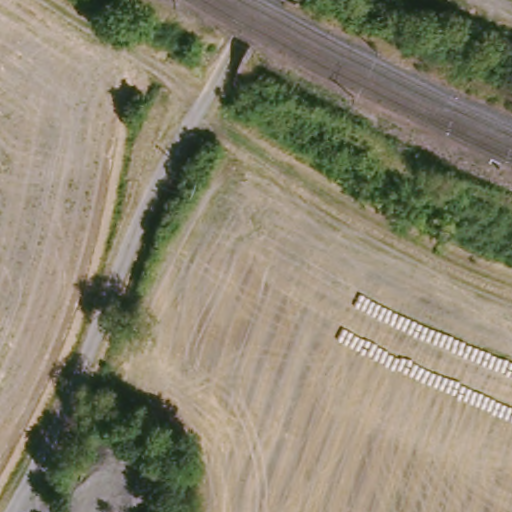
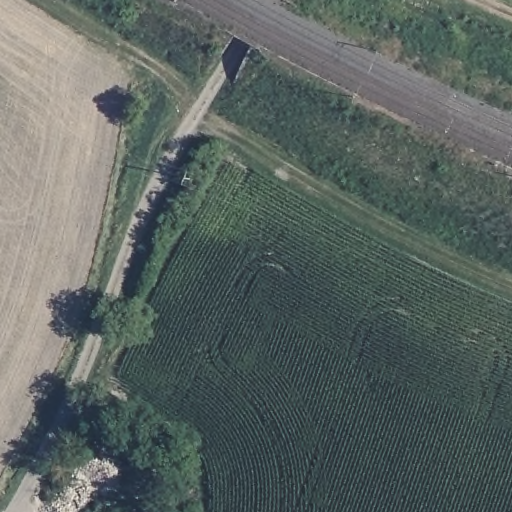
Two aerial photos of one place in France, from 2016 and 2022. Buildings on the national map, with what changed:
unchanged [(179,512),(155,512),(161,502),(179,512)]

